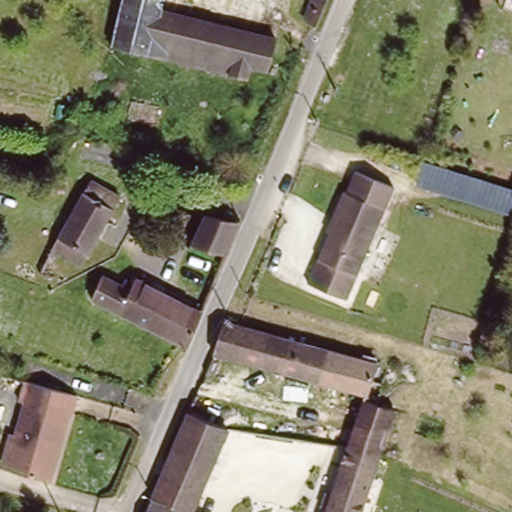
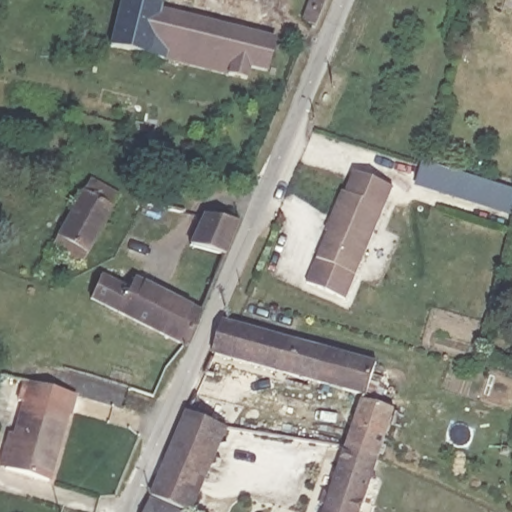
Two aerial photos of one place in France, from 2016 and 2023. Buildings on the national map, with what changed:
unchanged [(125,0),(168,0),(165,10),(279,40),(271,72),(252,67),(250,80),(114,46),(125,0)]
unchanged [(321,23),(311,14),(316,0),(330,0),(321,23)]
unchanged [(512,190),(512,215),(415,182),(422,160),(512,190)]
unchanged [(389,189),(342,298),(307,282),(328,230),(326,229),(350,172),(389,189)]
unchanged [(85,195),(101,203),(105,195),(122,200),(85,270),(53,254),(85,195)]
unchanged [(242,223),(229,256),(195,245),(209,214),(237,221),(242,223)]
unchanged [(207,325),(190,355),(186,353),(92,305),(103,283),(131,298),(136,288),(204,323),(207,325)]
unchanged [(217,350),(230,320),(241,323),(379,362),(377,367),(390,370),(381,400),(398,405),(396,412),(362,512),(327,512),(370,395),(217,350)]
unchanged [(17,434),(24,435),(34,400),(28,399),(32,383),(82,398),(78,415),(73,414),(55,481),(14,470),(10,468),(17,434)]
unchanged [(159,489),(170,462),(187,421),(225,437),(197,512),(172,512),(153,503),(159,489)]
unchanged [(154,512),(149,512),(150,510),(154,512)]

